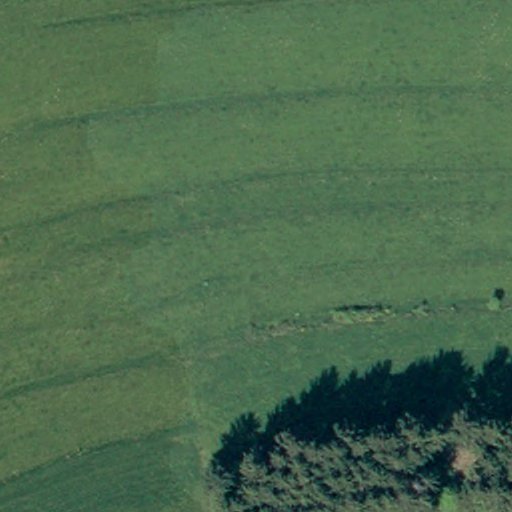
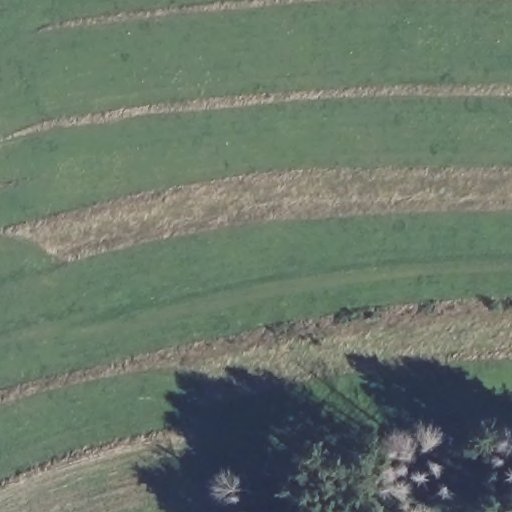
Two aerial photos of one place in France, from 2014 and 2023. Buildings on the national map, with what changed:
unchanged [(90,302),(120,294),(124,311),(96,317),(90,302)]

